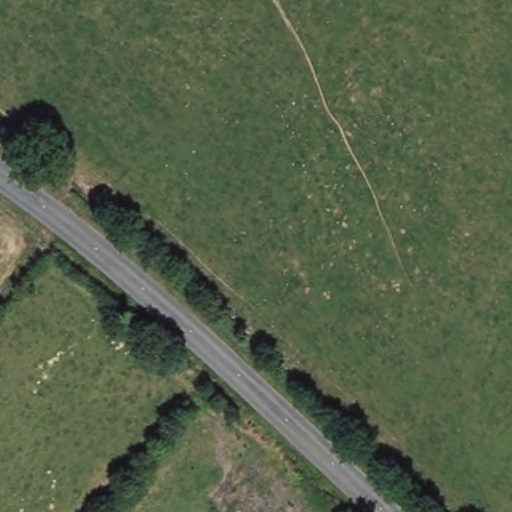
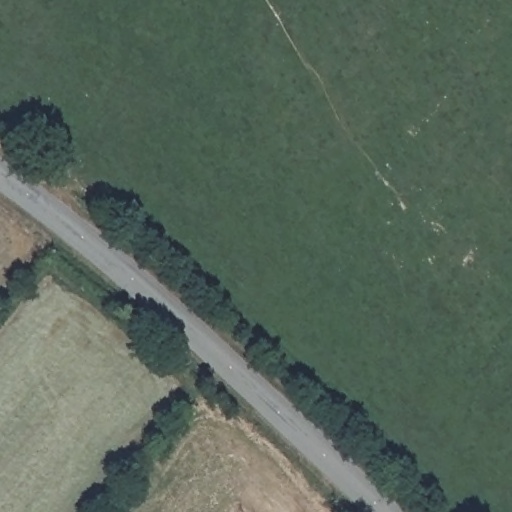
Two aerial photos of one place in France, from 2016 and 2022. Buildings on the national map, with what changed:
[]

